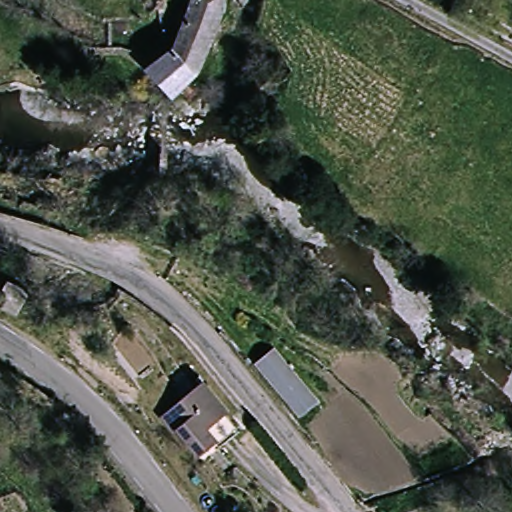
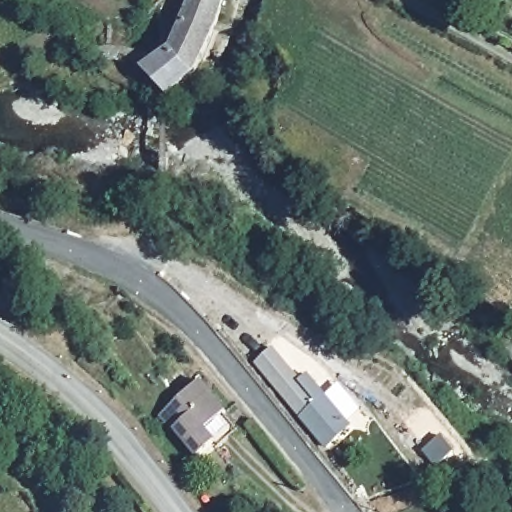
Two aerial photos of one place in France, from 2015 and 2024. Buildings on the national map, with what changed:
unchanged [(172,94),(149,68),(182,46),(195,0),(222,0),(202,73),(181,87),(172,94)]
unchanged [(459,0),(478,0),(479,0),(466,21),(452,13),(459,0)]
unchanged [(34,295),(20,317),(0,306),(0,305),(14,283),(34,295)]
unchanged [(293,419),(257,368),(278,351),(323,402),(293,419)]
new [(352,426),(326,450),(298,416),(323,402),(302,378),(308,374),(352,426)]
unchanged [(228,413),(225,416),(238,433),(219,449),(215,444),(197,458),(175,429),(172,432),(158,415),(203,380),(228,413)]

